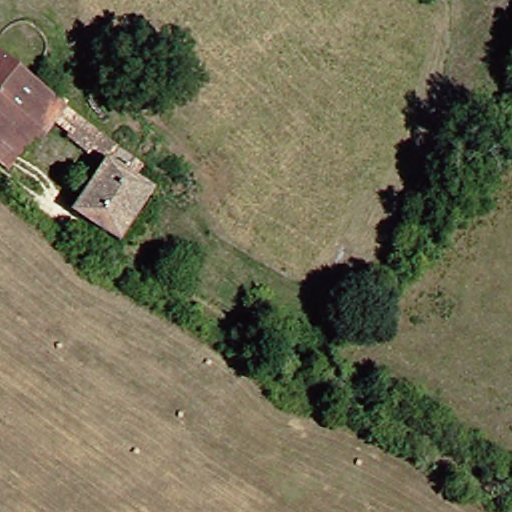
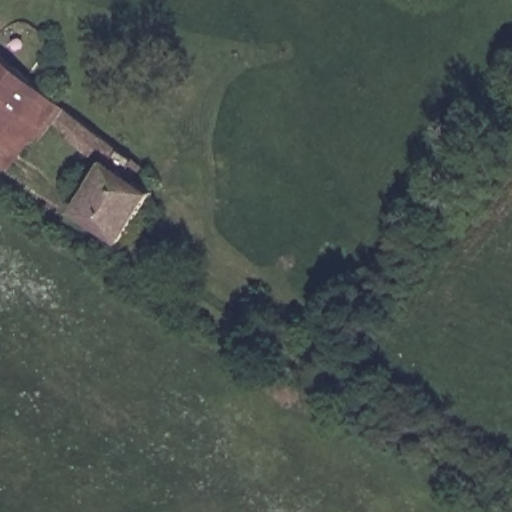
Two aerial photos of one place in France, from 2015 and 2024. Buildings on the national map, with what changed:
unchanged [(138,157),(145,163),(139,173),(159,187),(121,245),(77,214),(106,172),(70,149),(75,141),(57,126),(45,147),(35,144),(31,149),(28,147),(10,172),(0,165),(0,54),(140,152),(138,157)]

